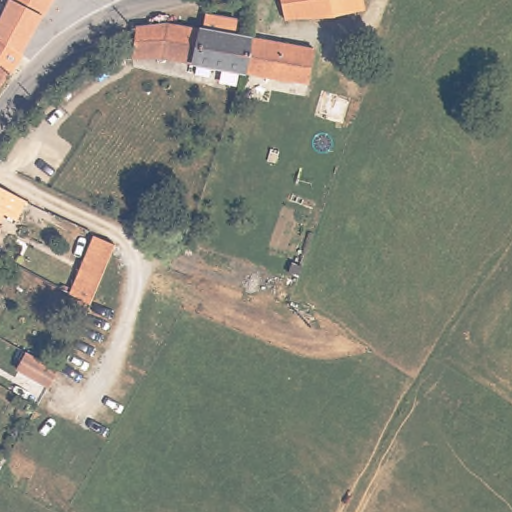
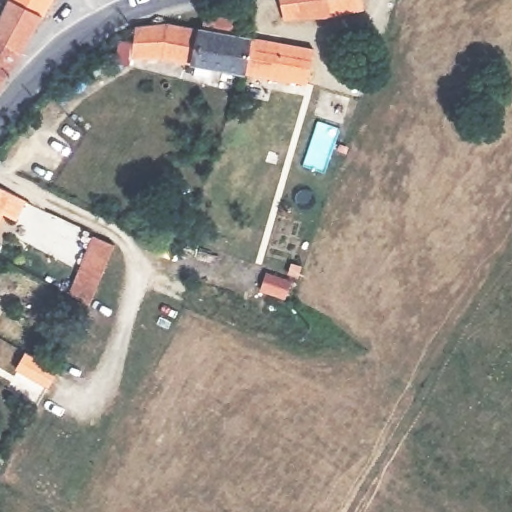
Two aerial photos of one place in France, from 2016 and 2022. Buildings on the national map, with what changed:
unchanged [(11,0),(19,0),(46,13),(29,47),(15,68),(0,89),(0,22),(11,0)]
unchanged [(19,0),(53,0),(46,13),(19,0)]
unchanged [(361,0),(363,7),(336,16),(283,17),(279,0),(361,0)]
unchanged [(135,20),(167,17),(201,23),(204,8),(235,13),(233,28),(248,31),(241,64),(209,58),(207,67),(192,65),(194,56),(162,51),(131,50),(135,20)]
unchanged [(241,64),(248,31),(278,36),(315,42),(308,76),(297,74),(241,64)]
unchanged [(296,92),(297,79),(309,82),(307,94),(296,92)]
unchanged [(27,191),(16,217),(2,211),(0,216),(0,178),(27,191)]
unchanged [(87,302),(65,291),(95,231),(113,240),(99,273),(87,302)]
unchanged [(2,318),(0,323),(0,316),(2,318)]
unchanged [(49,357),(59,363),(55,369),(46,386),(14,367),(22,350),(45,363),(49,357)]

